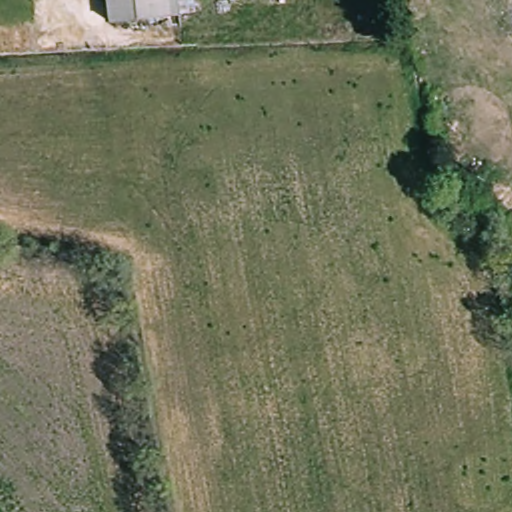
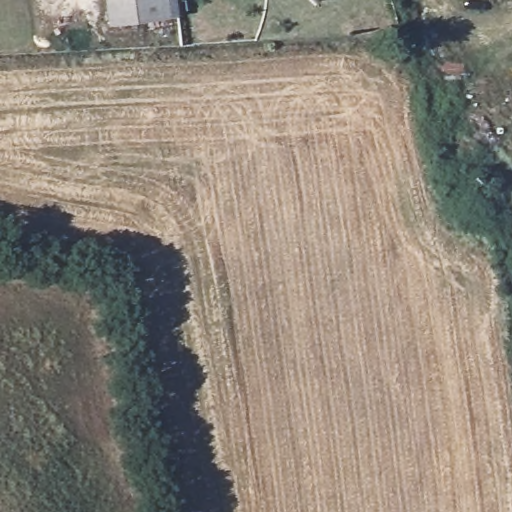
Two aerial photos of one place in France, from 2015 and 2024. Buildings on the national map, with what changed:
unchanged [(110,25),(106,0),(174,0),(174,5),(175,19),(110,25)]

